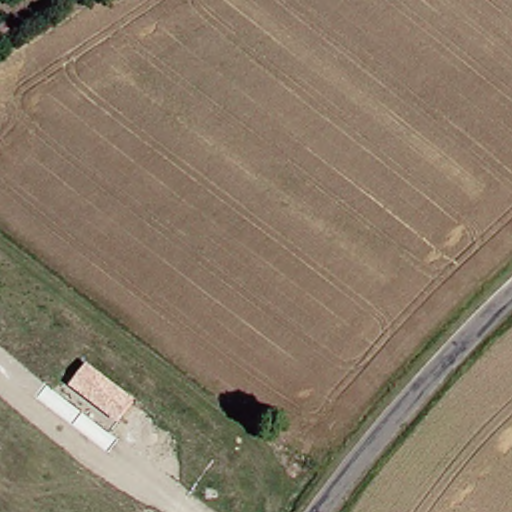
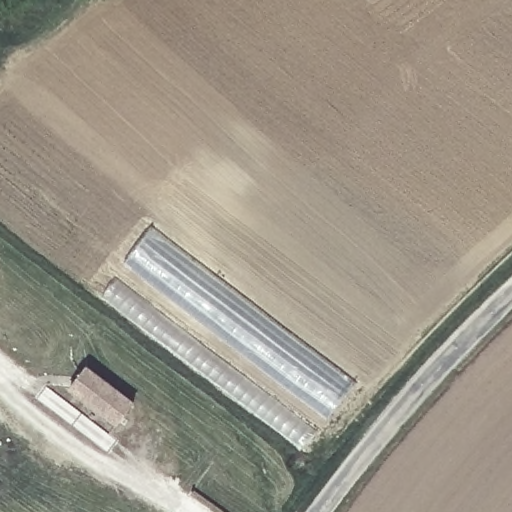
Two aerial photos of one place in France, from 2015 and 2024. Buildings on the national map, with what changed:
new [(329,417),(125,261),(153,226),(358,381),(329,417)]
new [(302,449),(102,295),(117,276),(318,433),(302,449)]
unchanged [(70,388),(88,366),(135,401),(117,424),(70,388)]
new [(45,385),(116,441),(107,453),(36,397),(45,385)]

